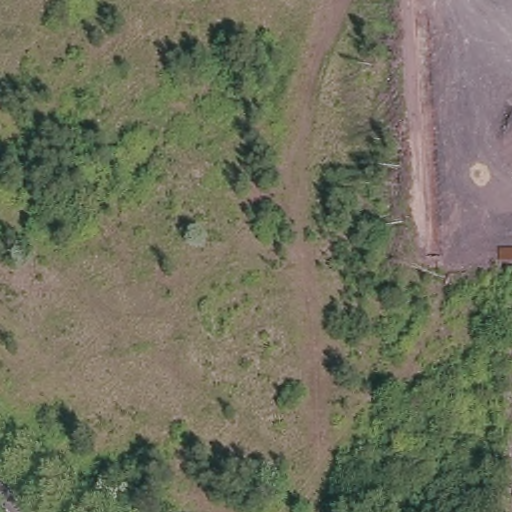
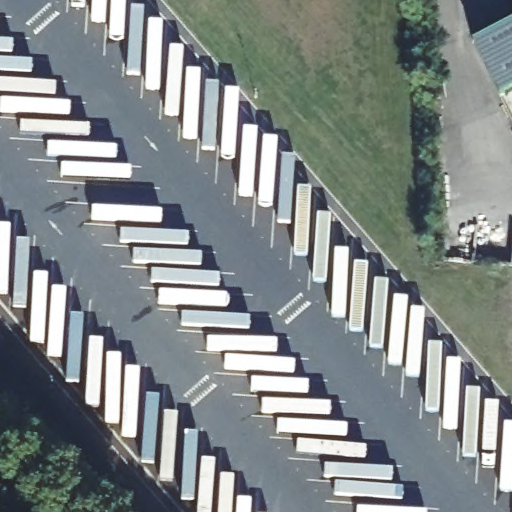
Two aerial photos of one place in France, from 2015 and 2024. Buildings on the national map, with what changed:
new [(473,40),(512,20),(512,89),(500,95),(473,40)]

